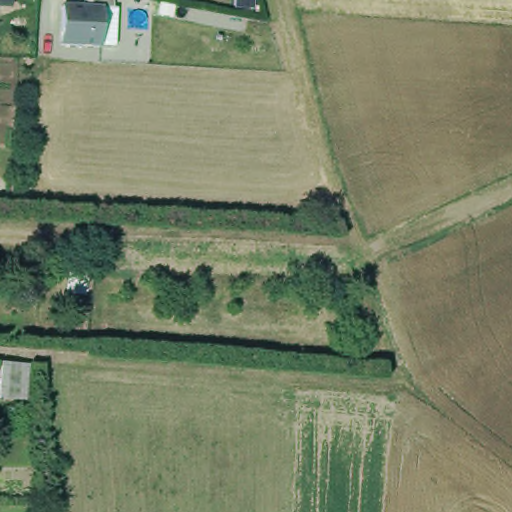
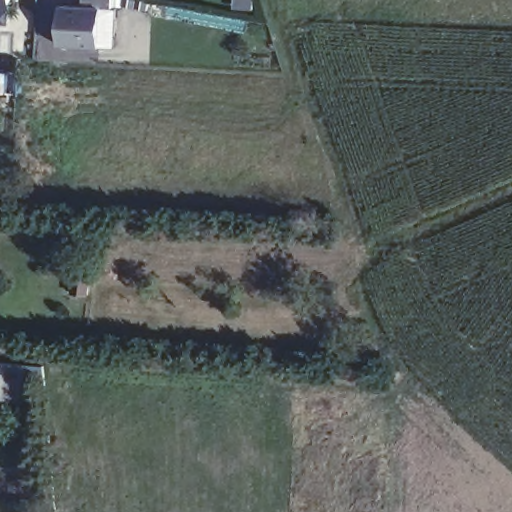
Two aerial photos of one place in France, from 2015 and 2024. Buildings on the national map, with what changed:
unchanged [(0,8),(0,0),(10,0),(9,9),(0,8)]
unchanged [(101,10),(99,48),(60,45),(60,9),(84,10),(84,0),(113,0),(113,10),(101,10)]
unchanged [(29,362),(26,398),(0,397),(0,389),(2,360),(29,362)]

